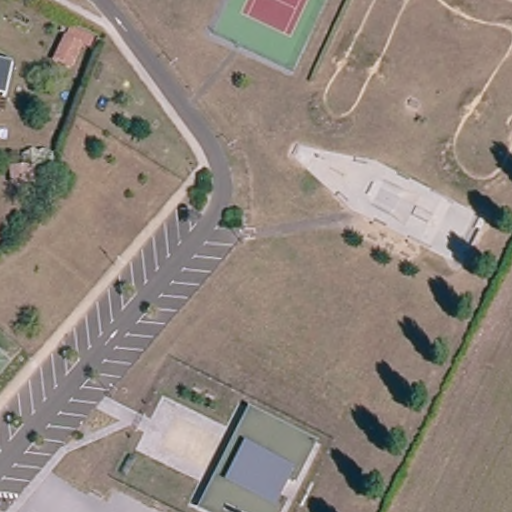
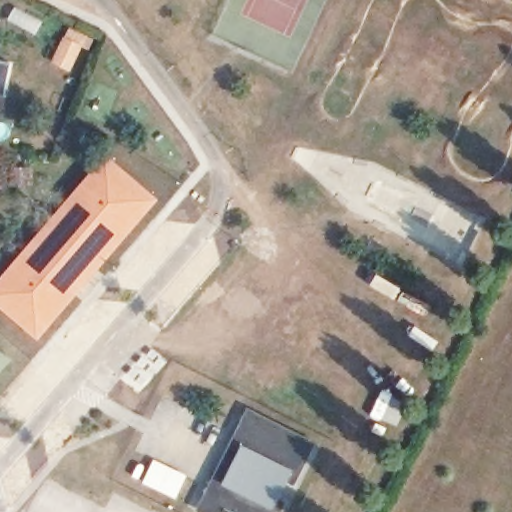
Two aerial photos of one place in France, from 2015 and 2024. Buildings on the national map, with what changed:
new [(71,34),(76,24),(98,34),(93,45),(86,41),(75,64),(60,57),(70,34),(71,34)]
new [(105,154),(158,199),(36,341),(0,310),(0,276),(105,154)]
demolished [(0,209),(11,217),(0,228),(0,209)]
unchanged [(205,500),(217,473),(232,445),(245,419),(250,410),(315,442),(310,451),(295,481),(285,501),(279,512),(208,512),(200,509),(205,500)]

